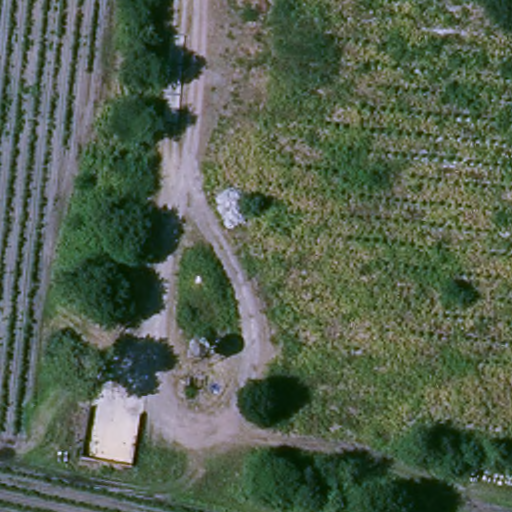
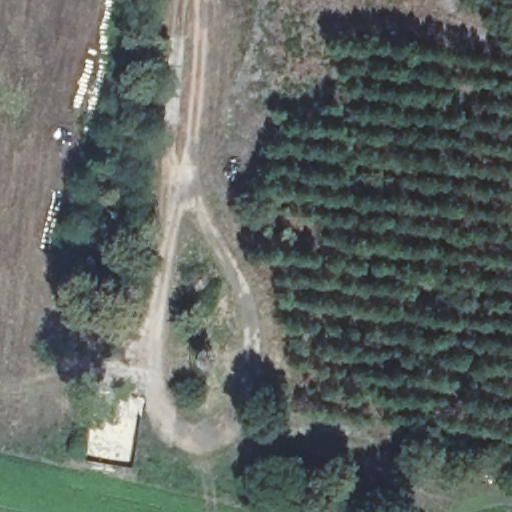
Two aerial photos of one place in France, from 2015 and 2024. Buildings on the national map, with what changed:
[]

